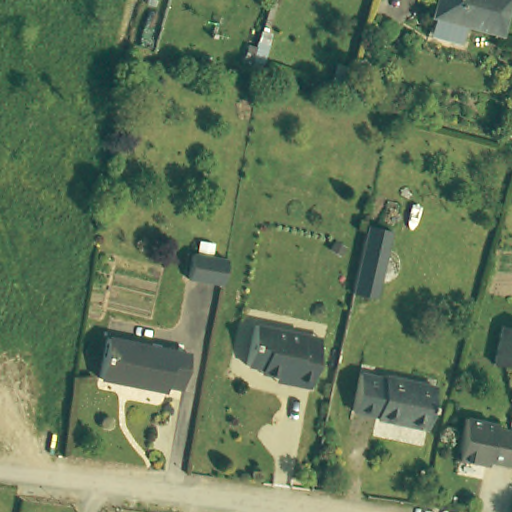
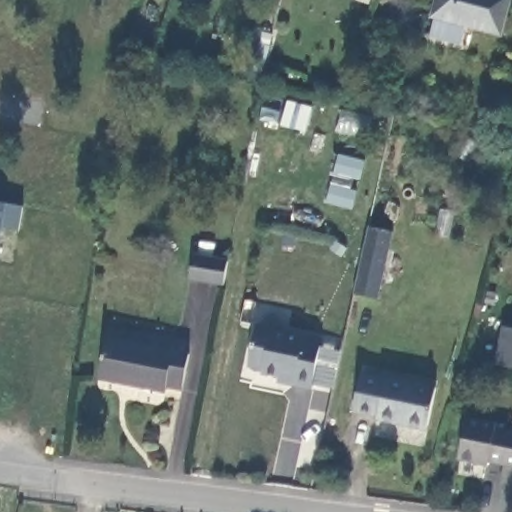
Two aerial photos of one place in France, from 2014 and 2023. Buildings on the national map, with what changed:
unchanged [(468,16),(462,36),(431,29),(439,0),(511,0),(504,27),(468,16)]
unchanged [(512,130),(512,142),(509,141),(512,130)]
new [(24,205),(19,230),(2,227),(0,238),(0,201),(24,205)]
unchanged [(399,234),(385,298),(384,301),(357,296),(374,228),(399,234)]
unchanged [(189,276),(195,250),(229,257),(223,282),(189,276)]
unchanged [(282,376),(265,373),(266,369),(249,365),(258,323),(307,335),(325,339),(323,347),(313,391),(294,386),(280,383),(282,376)]
unchanged [(507,327),(512,329),(512,362),(498,358),(507,327)]
unchanged [(194,355),(187,390),(173,386),(172,393),(101,379),(110,338),(194,355)]
unchanged [(428,432),(376,420),(377,417),(356,412),(364,378),(386,383),(387,379),(438,391),(428,432)]
unchanged [(512,429),(512,461),(495,457),(493,465),(461,457),(472,413),(503,420),(502,426),(512,429)]

